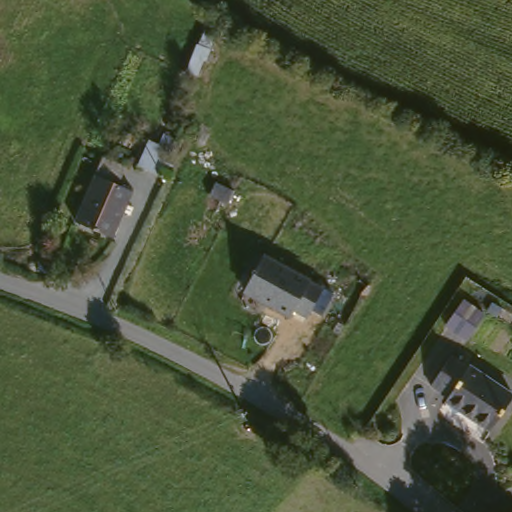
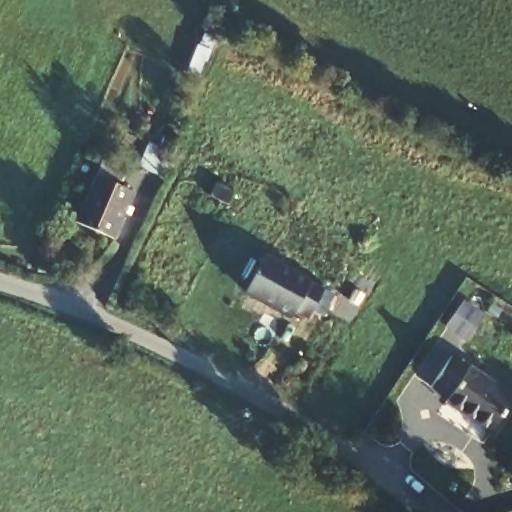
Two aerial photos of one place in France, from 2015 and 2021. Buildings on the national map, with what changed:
unchanged [(204,61),(198,76),(186,72),(197,45),(199,45),(205,33),(216,39),(205,62),(204,61)]
unchanged [(138,166),(149,140),(160,145),(162,140),(165,134),(175,140),(160,176),(138,166)]
unchanged [(133,208),(130,215),(125,214),(113,239),(75,222),(104,159),(126,169),(119,185),(134,192),(128,205),(133,208)]
unchanged [(265,255),(325,286),(306,319),(295,313),(291,319),(241,295),(265,255)]
unchanged [(446,331),(463,302),(486,318),(468,347),(446,331)]
unchanged [(446,401),(447,399),(430,386),(451,355),(512,396),(512,400),(491,431),(446,401)]

